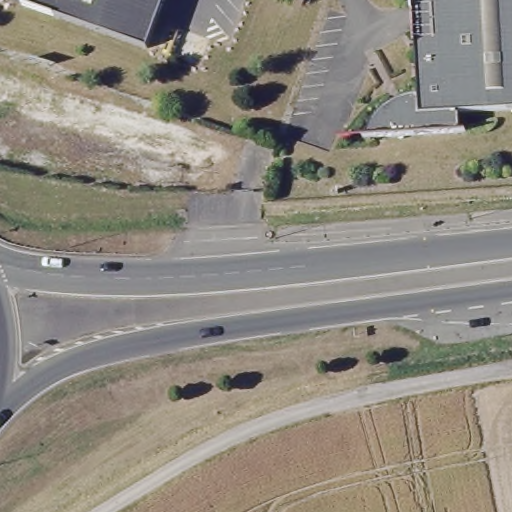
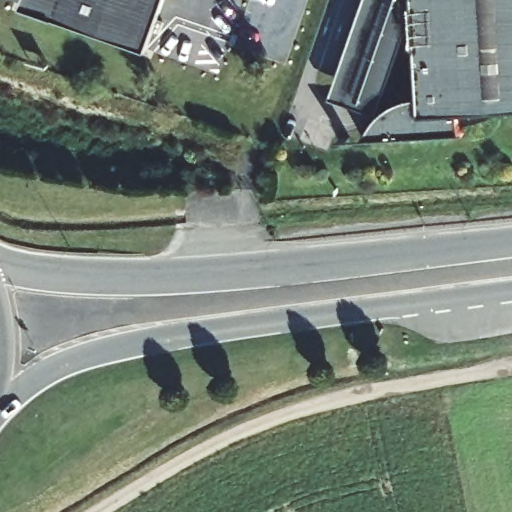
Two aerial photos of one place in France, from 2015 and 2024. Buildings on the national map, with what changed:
unchanged [(24,10),(28,0),(166,0),(147,51),(24,10)]
new [(331,96),(365,0),(414,0),(414,4),(377,112),(331,96)]
unchanged [(460,136),(360,143),(362,129),(374,111),(418,96),(414,0),(512,0),(512,114),(458,116),(460,136)]

